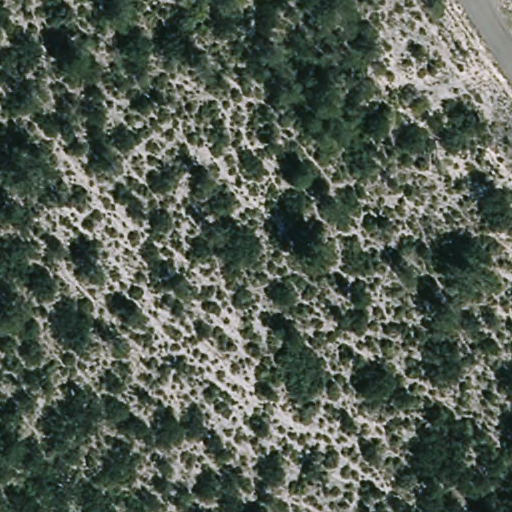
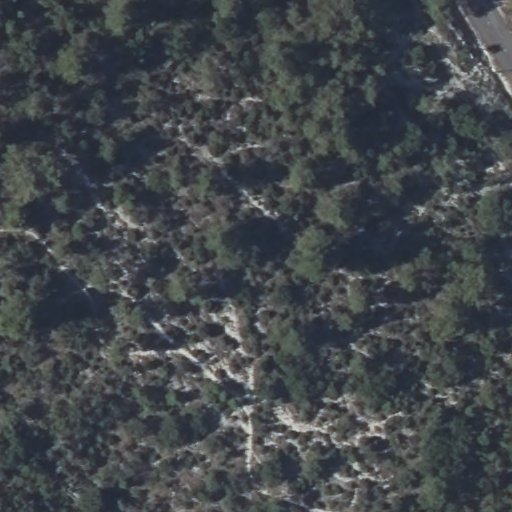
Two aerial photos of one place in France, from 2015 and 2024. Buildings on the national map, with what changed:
[]

